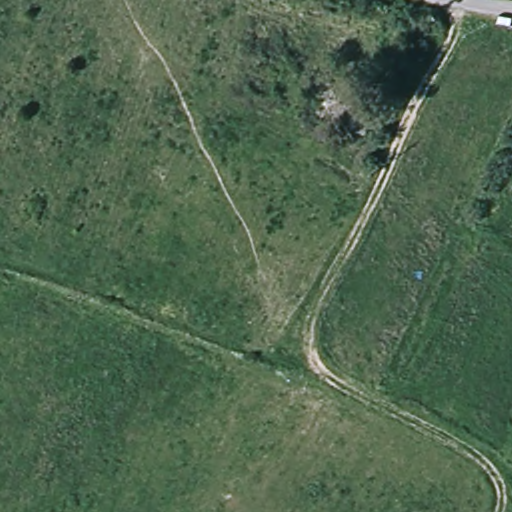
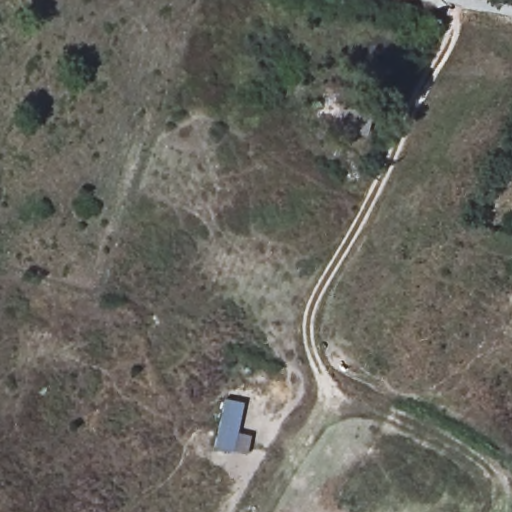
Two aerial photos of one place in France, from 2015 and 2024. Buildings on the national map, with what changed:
unchanged [(370,105),(368,135),(339,133),(334,101),(370,105)]
new [(225,398),(243,402),(237,432),(251,435),(246,455),(214,448),(225,398)]

